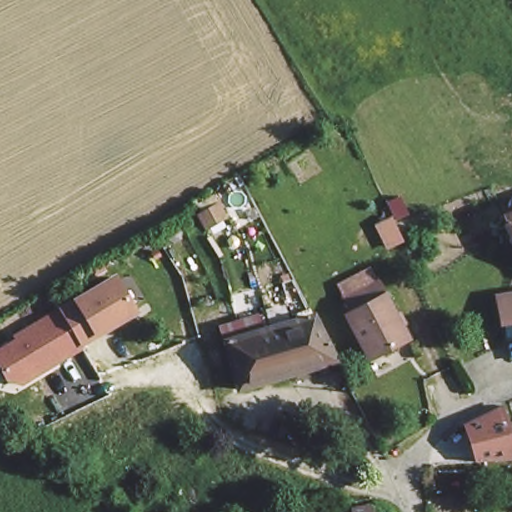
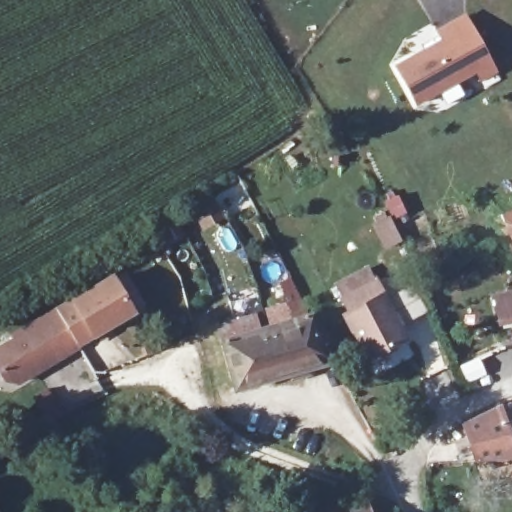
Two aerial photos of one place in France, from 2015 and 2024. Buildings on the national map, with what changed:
new [(480,71),(415,106),(394,66),(440,38),(435,31),(453,20),(480,71)]
unchanged [(512,216),(512,232),(505,219),(505,218),(512,216)]
unchanged [(78,346),(81,349),(22,385),(5,383),(0,375),(0,346),(13,339),(10,334),(114,273),(136,312),(78,346)]
unchanged [(339,295),(374,276),(408,336),(367,357),(341,310),(345,307),(339,295)]
unchanged [(495,288),(512,286),(512,311),(499,313),(495,288)]
unchanged [(237,394),(218,329),(260,316),(265,335),(309,324),(315,323),(339,367),(237,394)]
unchanged [(502,412),(507,427),(512,440),(512,450),(477,460),(462,459),(457,426),(465,419),(502,412)]
unchanged [(304,512),(304,508),(329,509),(350,511),(358,510),(358,512),(304,512)]
unchanged [(374,508),(374,512),(358,512),(358,510),(374,508)]

